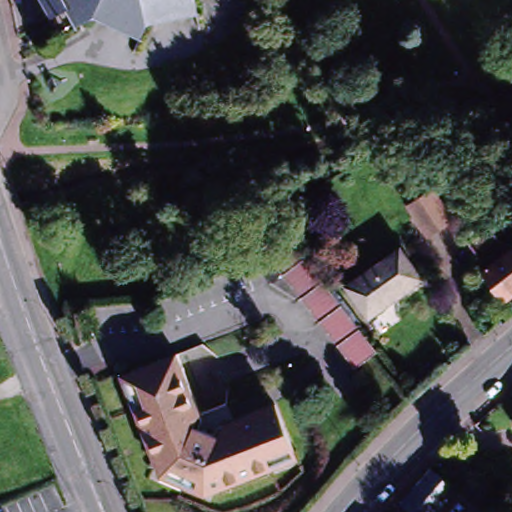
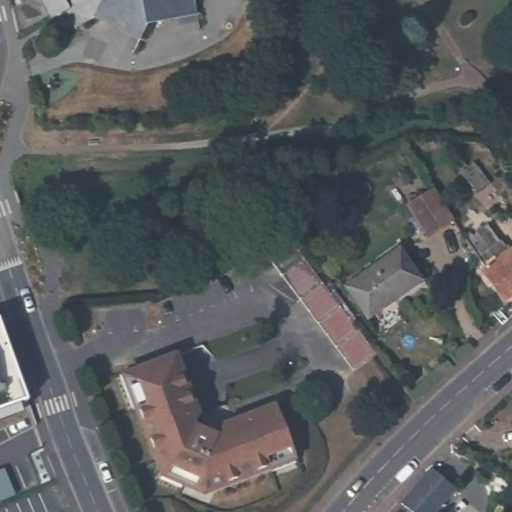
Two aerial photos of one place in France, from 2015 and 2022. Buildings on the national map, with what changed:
unchanged [(47,20),(36,0),(191,0),(193,11),(194,18),(143,26),(137,37),(135,43),(91,19),(72,30),(61,12),(47,20)]
unchanged [(489,186),(478,195),(459,171),(466,166),(470,171),(475,167),(489,186)]
unchanged [(442,196),(457,223),(433,237),(413,203),(438,189),(442,196)]
unchanged [(486,232),(500,248),(501,247),(510,259),(512,257),(512,302),(505,308),(483,279),(487,276),(482,269),(466,247),(486,232)]
unchanged [(335,297),(378,355),(354,371),(305,306),(282,276),(262,250),(290,238),(335,297)]
unchanged [(421,281),(368,318),(348,289),(401,252),(421,281)]
new [(27,404),(0,414),(0,330),(27,404)]
unchanged [(160,483),(134,415),(120,380),(130,376),(177,358),(201,419),(195,432),(218,441),(220,442),(223,429),(276,409),(295,457),(298,466),(273,476),(241,488),(205,502),(195,506),(163,493),(160,483)]
unchanged [(511,423),(512,422),(512,430),(511,429),(511,423)]
new [(16,496),(0,502),(0,473),(5,471),(16,496)]
unchanged [(426,472),(448,491),(430,512),(408,512),(398,503),(426,472)]

